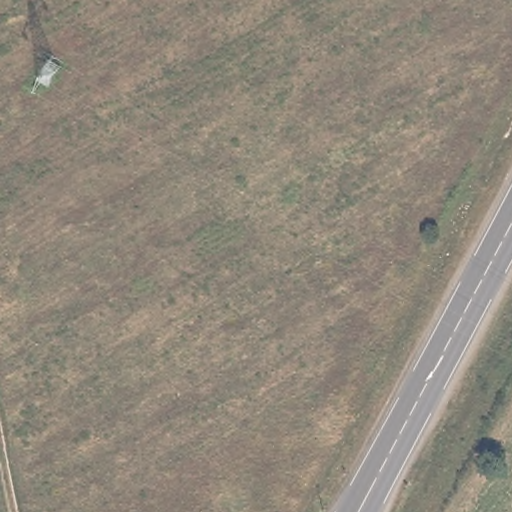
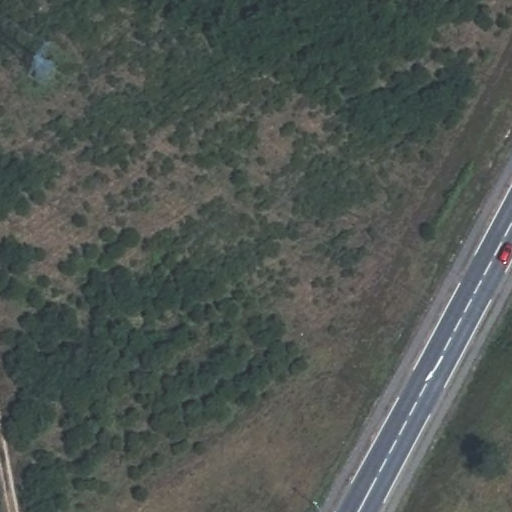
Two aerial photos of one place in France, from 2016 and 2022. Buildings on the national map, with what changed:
[]

